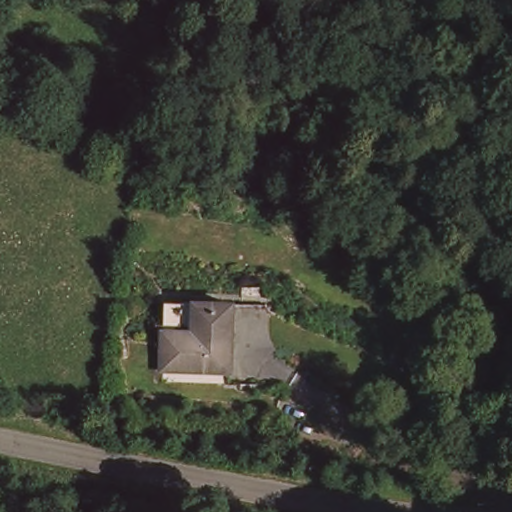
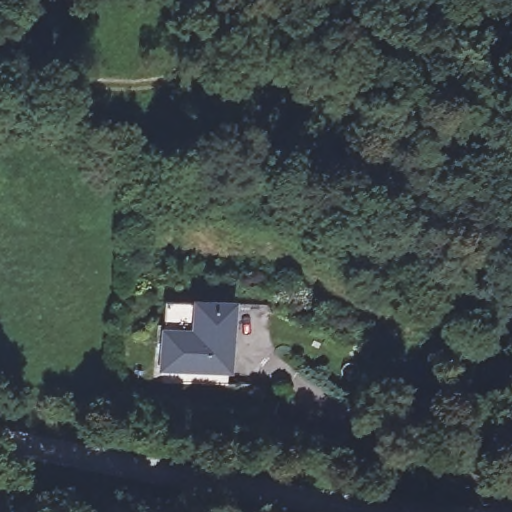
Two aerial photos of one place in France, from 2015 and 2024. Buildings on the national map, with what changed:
unchanged [(276,362),(240,373),(156,368),(156,327),(176,327),(176,299),(271,300),(276,362)]

